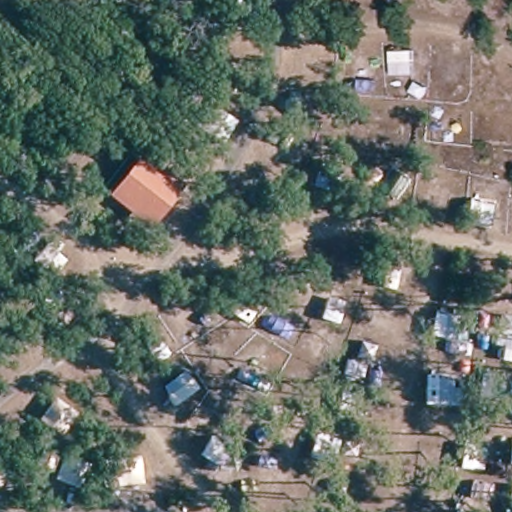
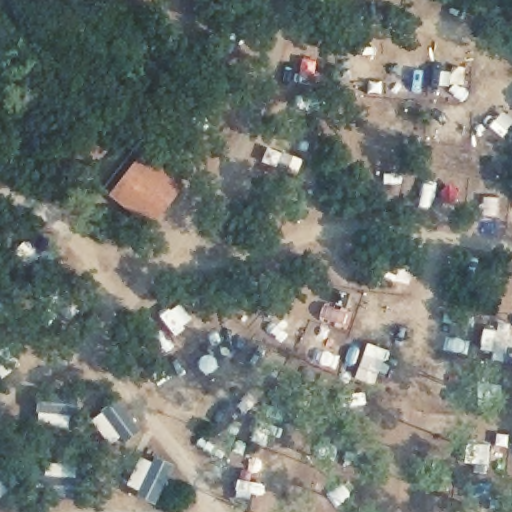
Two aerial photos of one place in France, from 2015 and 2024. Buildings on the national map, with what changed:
unchanged [(149,225),(114,197),(141,163),(176,192),(149,225)]

